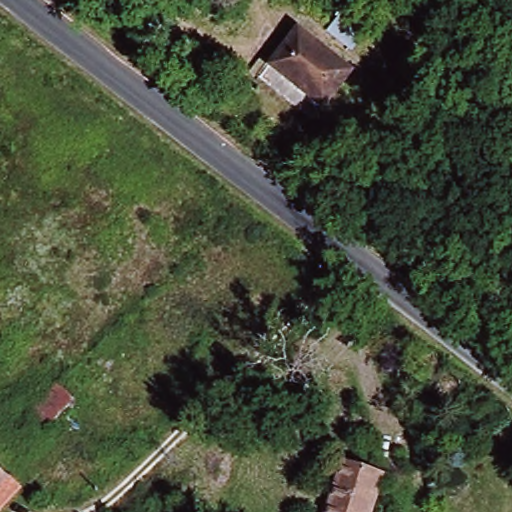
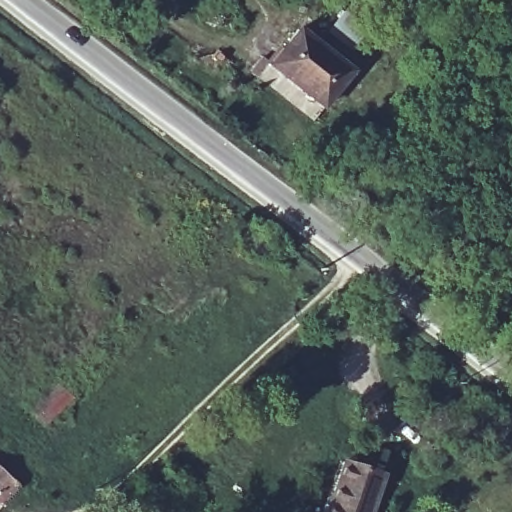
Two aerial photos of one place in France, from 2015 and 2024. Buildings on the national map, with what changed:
unchanged [(359,62),(331,100),(277,59),(304,22),(359,62)]
unchanged [(331,100),(322,113),(267,72),(277,59),(331,100)]
unchanged [(372,512),(326,512),(343,461),(383,473),(372,512)]
unchanged [(3,474),(0,477),(0,471),(3,474)]

